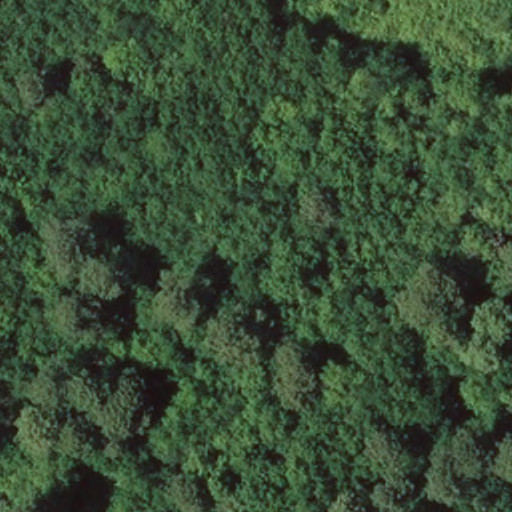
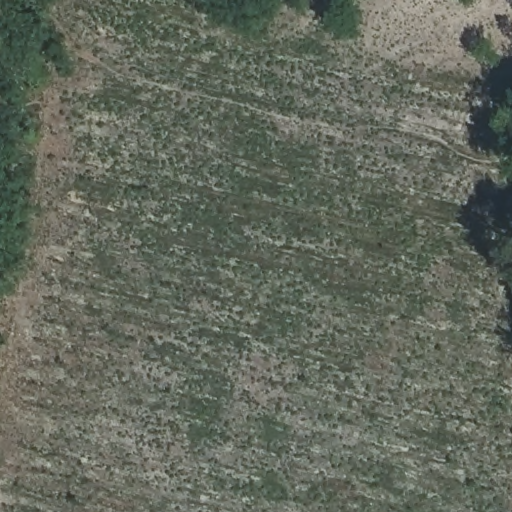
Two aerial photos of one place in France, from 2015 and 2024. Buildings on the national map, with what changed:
[]

